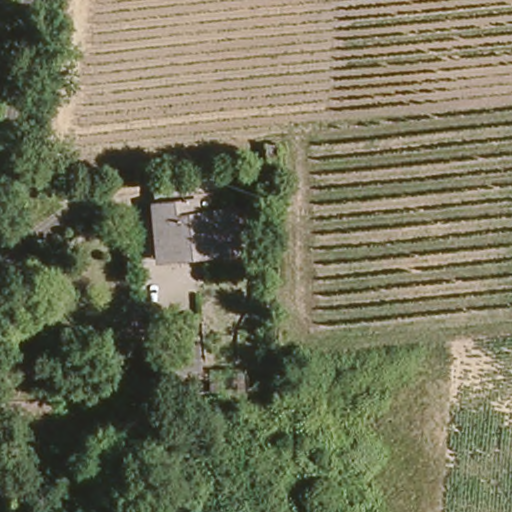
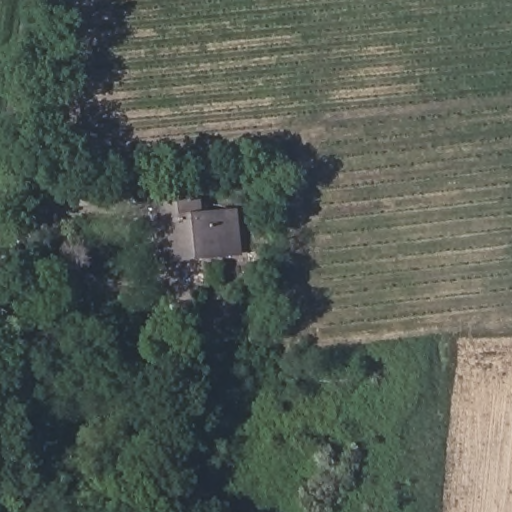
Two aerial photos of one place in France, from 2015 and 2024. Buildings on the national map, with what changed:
unchanged [(154,225),(154,220),(159,220),(158,195),(192,194),(193,211),(199,211),(199,225),(234,224),(238,263),(203,264),(157,266),(154,225)]
unchanged [(200,377),(160,378),(159,354),(199,353),(200,377)]

